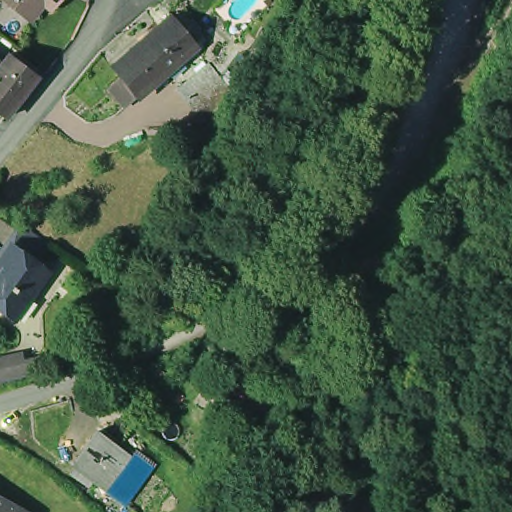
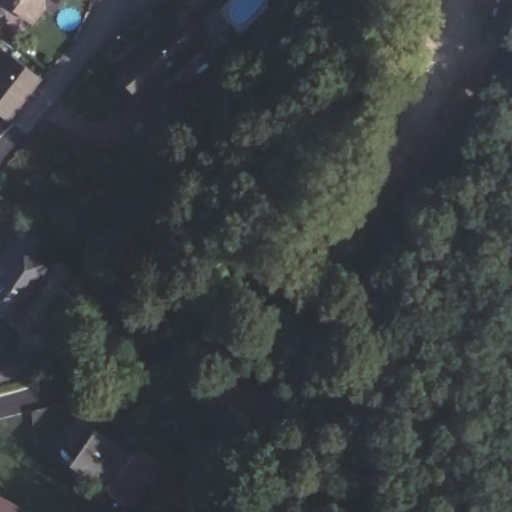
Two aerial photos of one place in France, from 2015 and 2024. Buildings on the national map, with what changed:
unchanged [(30,14),(12,0),(41,0),(30,14)]
unchanged [(51,2),(48,0),(53,0),(51,2)]
unchanged [(158,55),(146,66),(133,51),(173,16),(200,46),(171,70),(158,55)]
unchanged [(158,55),(171,70),(143,95),(117,65),(133,51),(146,66),(158,55)]
unchanged [(37,85),(6,125),(0,120),(0,70),(6,61),(37,85)]
unchanged [(216,109),(208,116),(194,100),(184,88),(213,65),(222,77),(233,89),(238,84),(251,98),(245,103),(241,98),(221,115),(216,109)]
unchanged [(40,261),(53,270),(39,291),(33,287),(23,303),(14,315),(1,335),(0,334),(0,258),(10,242),(40,261)]
unchanged [(0,365),(18,360),(28,358),(32,372),(22,375),(3,380),(0,368),(0,365)]
unchanged [(273,394),(261,414),(254,410),(248,420),(230,410),(236,399),(228,395),(239,376),(273,394)]
unchanged [(133,459),(109,493),(77,471),(101,437),(133,459)]
unchanged [(0,512),(0,499),(23,512),(0,512)]

